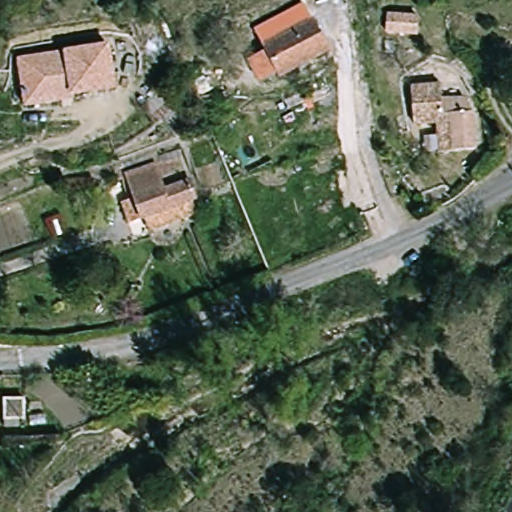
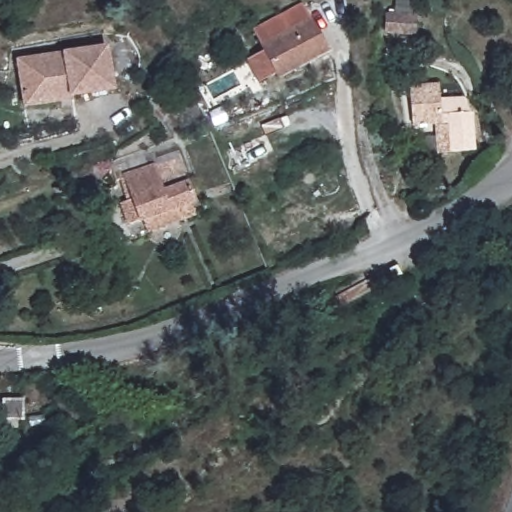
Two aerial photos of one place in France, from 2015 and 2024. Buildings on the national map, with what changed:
unchanged [(278,75),(262,39),(272,35),(266,16),(298,0),(302,0),(328,49),(278,75)]
unchanged [(383,15),(412,8),(416,25),(387,32),(383,15)]
unchanged [(34,116),(30,107),(16,71),(100,37),(117,78),(77,94),(79,98),(34,116)]
unchanged [(449,146),(440,119),(417,125),(410,102),(405,90),(433,80),(437,95),(438,95),(460,89),(477,137),(449,146)]
unchanged [(122,167),(186,142),(202,182),(138,207),(122,167)]
unchanged [(202,182),(209,201),(192,208),(146,226),(138,207),(202,182)]
unchanged [(23,415),(4,415),(4,398),(23,398),(23,415)]

